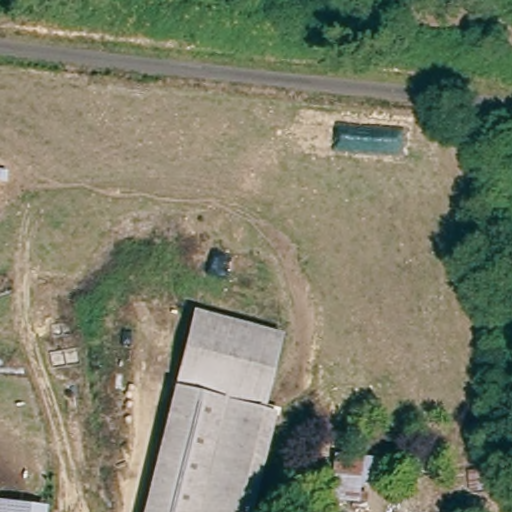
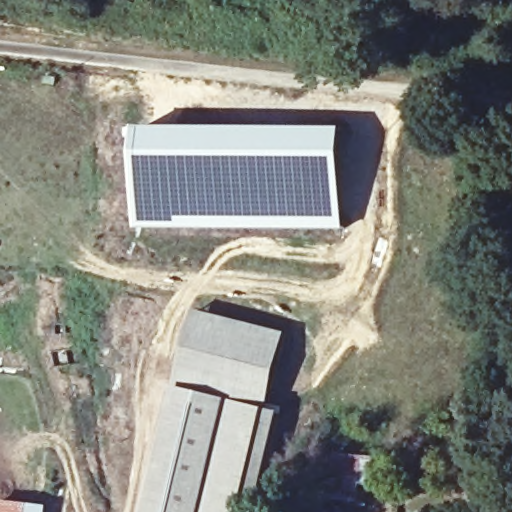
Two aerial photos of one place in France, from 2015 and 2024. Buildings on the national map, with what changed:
new [(139,126),(345,126),(344,230),(138,229),(139,126)]
unchanged [(207,311),(294,336),(306,339),(294,381),(256,512),(149,512),(194,357),(207,311)]
unchanged [(357,503),(331,498),(336,452),(365,452),(357,503)]
unchanged [(50,512),(0,512),(0,502),(51,508),(50,512)]

